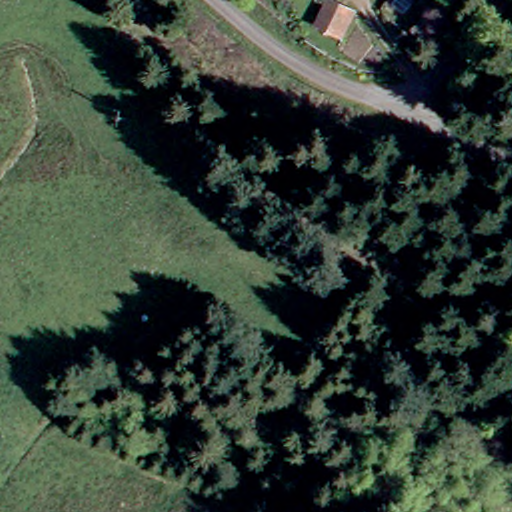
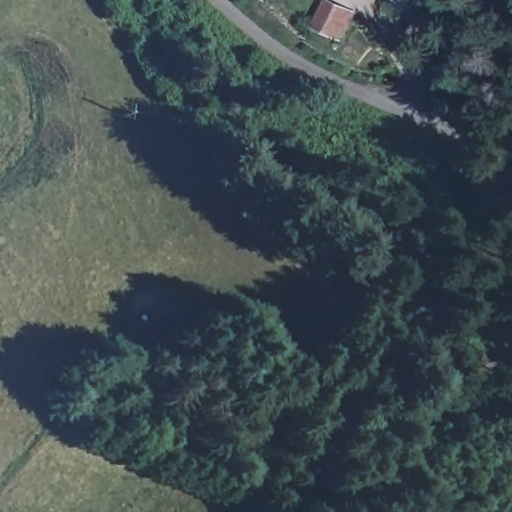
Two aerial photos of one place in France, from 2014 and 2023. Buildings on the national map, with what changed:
unchanged [(341,5),(363,14),(351,39),(330,28),(341,5)]

